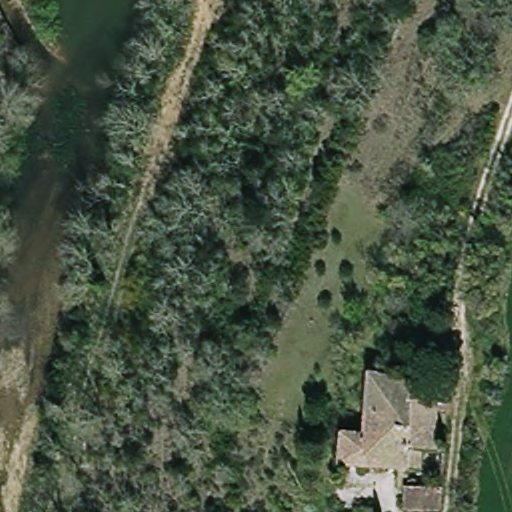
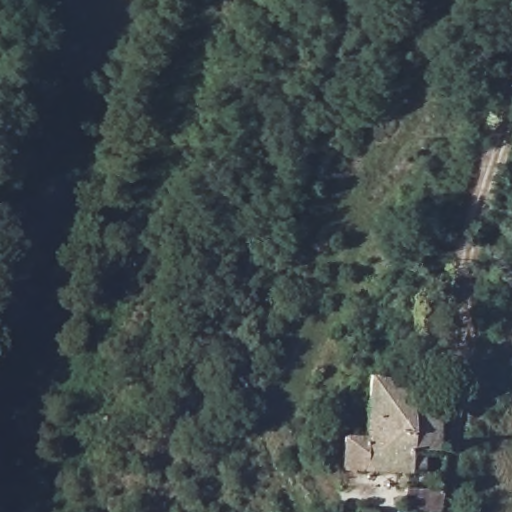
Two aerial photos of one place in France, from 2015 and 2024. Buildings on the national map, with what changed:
unchanged [(419,443),(415,465),(357,461),(337,458),(339,433),(362,434),(366,372),(436,384),(427,443),(419,443)]
unchanged [(410,487),(422,487),(436,490),(434,512),(425,512),(407,510),(410,487)]

